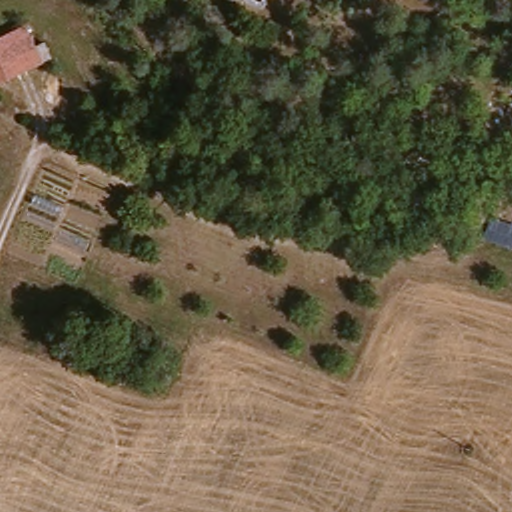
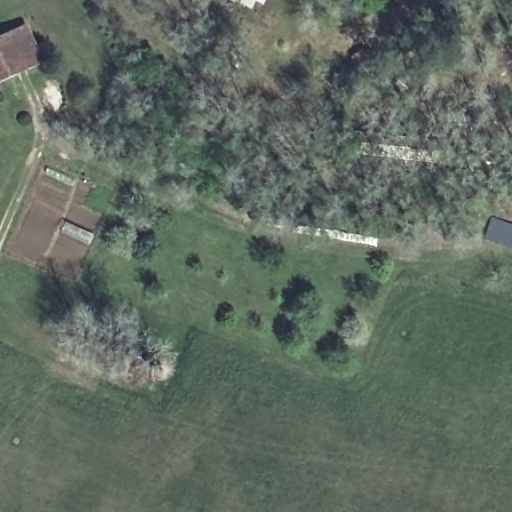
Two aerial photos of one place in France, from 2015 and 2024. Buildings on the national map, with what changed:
unchanged [(24,31),(39,62),(0,81),(0,43),(24,31)]

